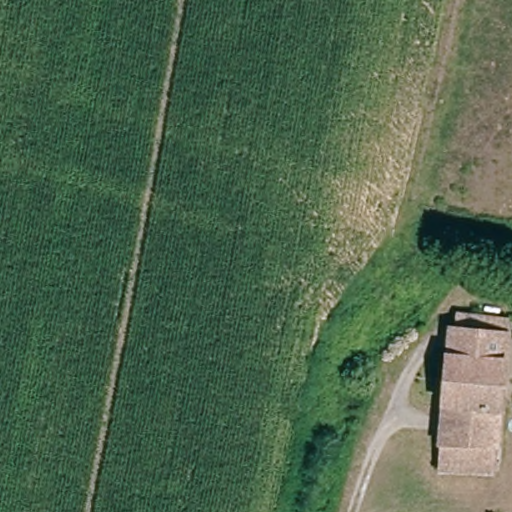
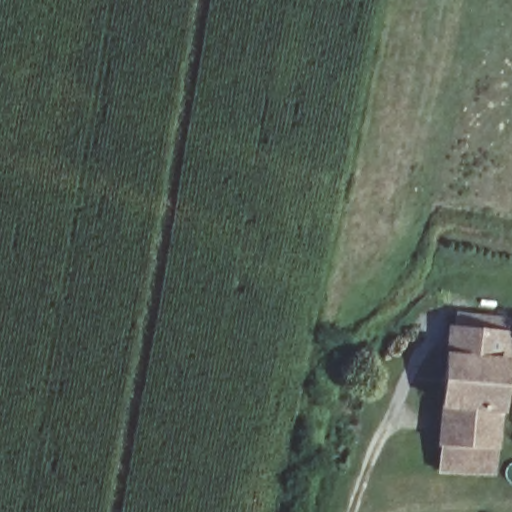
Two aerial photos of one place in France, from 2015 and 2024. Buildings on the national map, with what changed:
unchanged [(464,323),(465,309),(510,315),(499,482),(441,480),(450,322),(464,323)]

